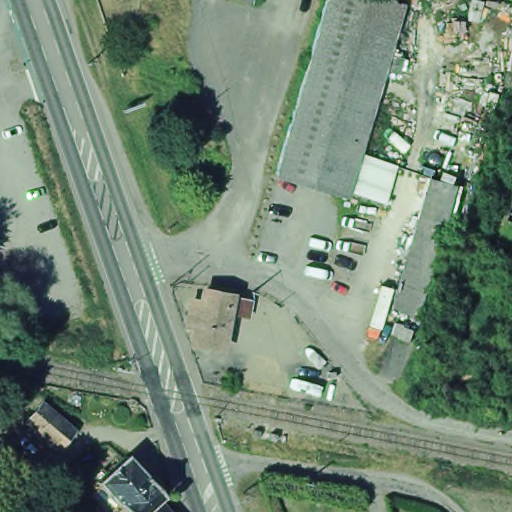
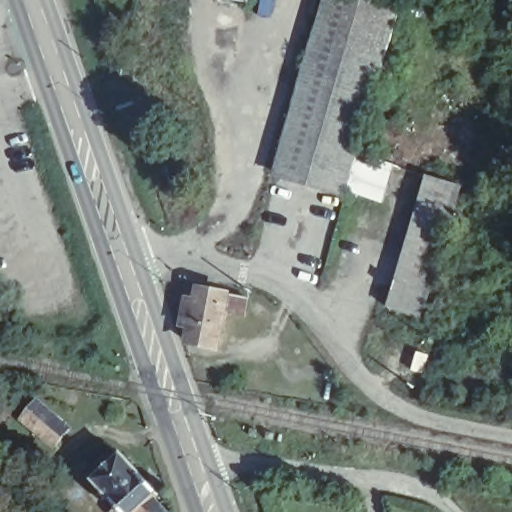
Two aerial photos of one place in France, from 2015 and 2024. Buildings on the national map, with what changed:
unchanged [(237,0),(242,0),(242,1),(237,0)]
unchanged [(343,195),(342,199),(277,180),(270,178),(321,0),(364,0),(396,9),(382,59),(396,63),(391,80),(377,76),(357,145),(353,159),(343,195)]
unchanged [(353,159),(390,169),(380,205),(343,195),(353,159)]
unchanged [(422,182),(457,192),(418,322),(385,312),(422,182)]
unchanged [(197,330),(188,328),(193,300),(203,302),(206,290),(232,295),(222,348),(194,342),(197,330)]
unchanged [(418,333),(414,343),(390,334),(393,323),(418,333)]
unchanged [(22,397),(55,424),(40,441),(8,415),(22,397)]
unchanged [(88,481),(117,455),(153,494),(148,500),(160,512),(117,512),(88,481)]

